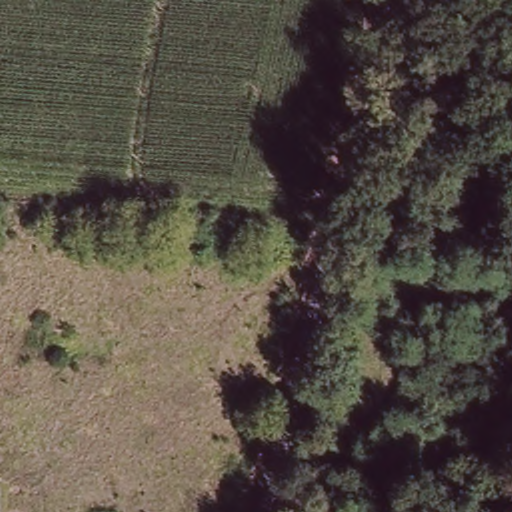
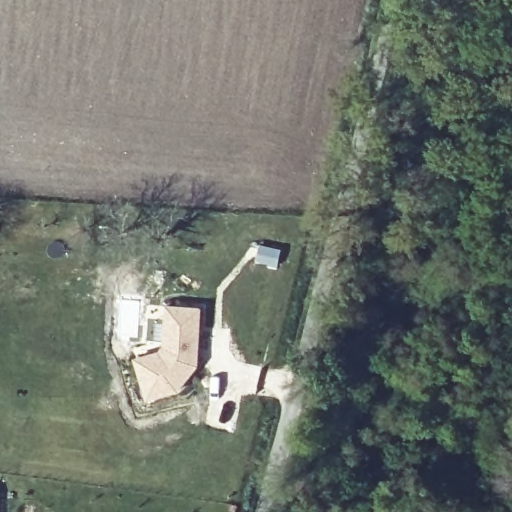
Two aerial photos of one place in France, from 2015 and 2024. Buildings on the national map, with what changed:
new [(196,366),(175,391),(145,400),(134,359),(159,352),(164,347),(166,306),(200,309),(197,349),(197,358),(196,366)]

